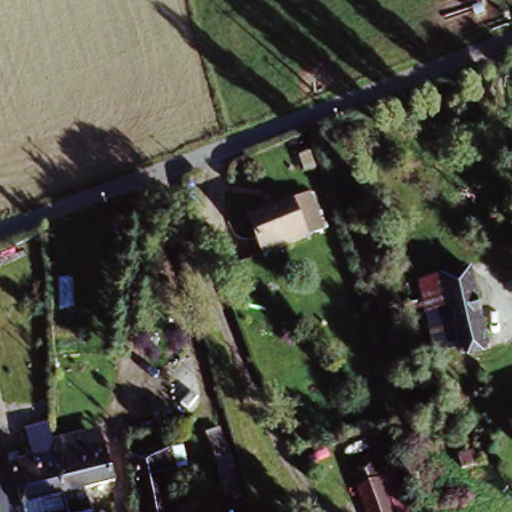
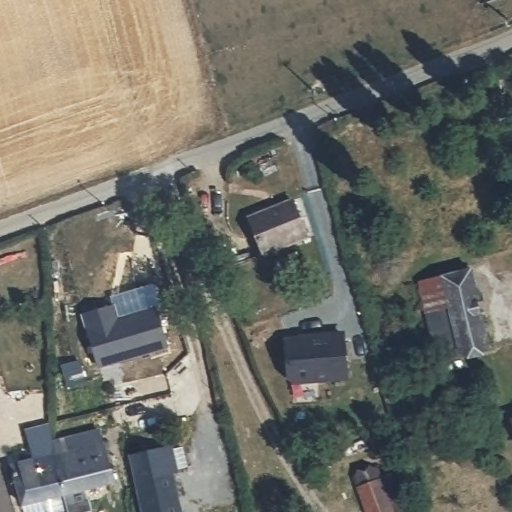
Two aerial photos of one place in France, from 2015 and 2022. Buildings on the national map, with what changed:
unchanged [(268,260),(253,222),(297,205),(311,242),(268,260)]
unchanged [(461,357),(451,311),(425,316),(418,287),(469,276),(486,351),(461,357)]
new [(157,305),(168,347),(98,368),(83,314),(116,304),(120,316),(157,305)]
new [(346,335),(346,381),(294,385),(287,377),(284,339),(346,335)]
unchanged [(240,491),(224,495),(213,455),(213,451),(206,432),(218,428),(225,448),(228,447),(240,491)]
unchanged [(10,471),(34,465),(33,458),(46,455),(48,461),(53,460),(56,459),(54,453),(55,441),(98,430),(103,448),(114,485),(61,500),(58,500),(62,512),(23,512),(23,510),(10,471)]
unchanged [(160,478),(167,512),(144,512),(134,463),(182,453),(186,472),(160,478)]
new [(353,481),(376,472),(384,494),(379,480),(398,470),(413,512),(365,512),(361,503),(353,481)]
demolished [(361,503),(353,481),(376,472),(384,494),(361,503)]
unchanged [(93,511),(91,512),(69,512),(65,498),(88,492),(93,511)]

